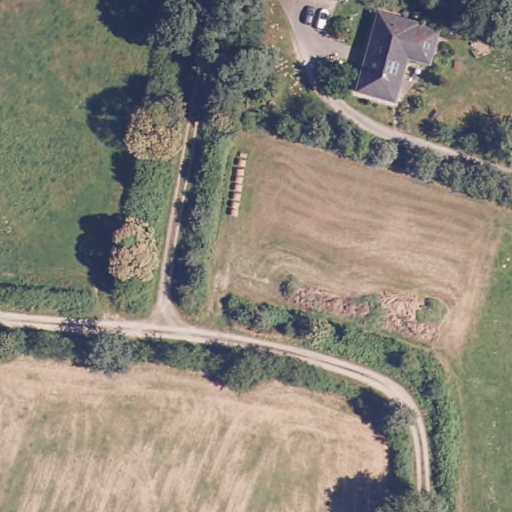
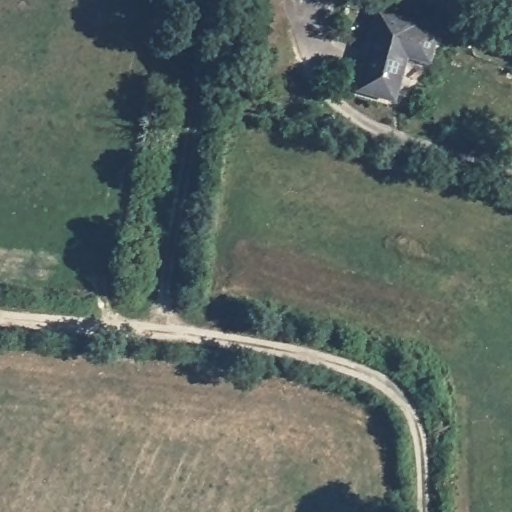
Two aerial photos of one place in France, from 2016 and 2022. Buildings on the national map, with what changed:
unchanged [(326,0),(335,0),(335,2),(326,0)]
unchanged [(406,56),(394,99),(358,90),(379,12),(416,21),(420,25),(436,31),(427,60),(406,56)]

